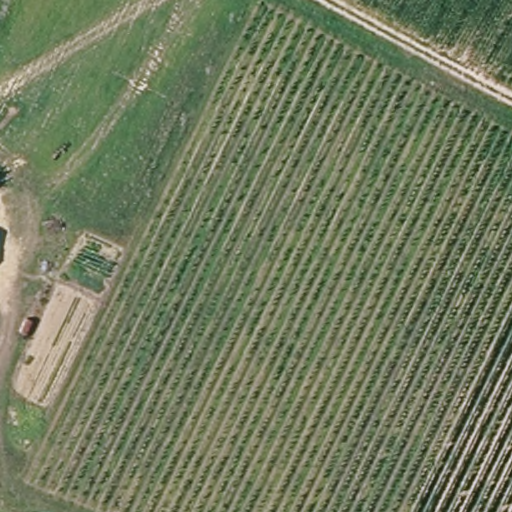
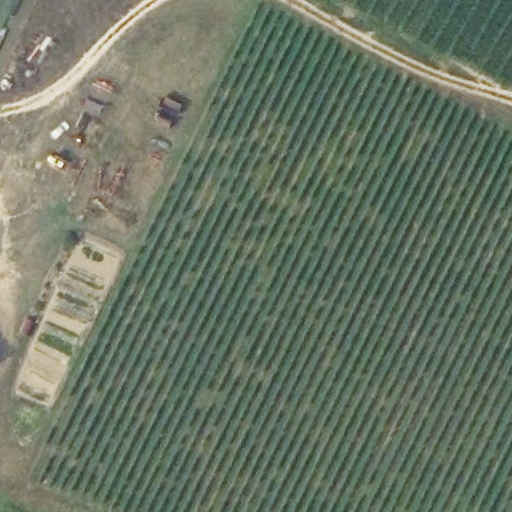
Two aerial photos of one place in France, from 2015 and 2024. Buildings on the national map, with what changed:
[]

